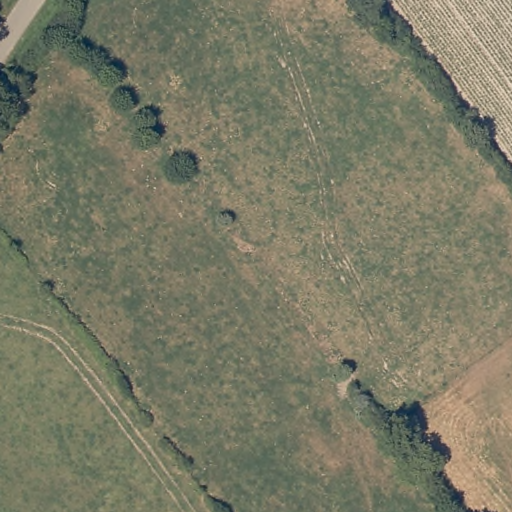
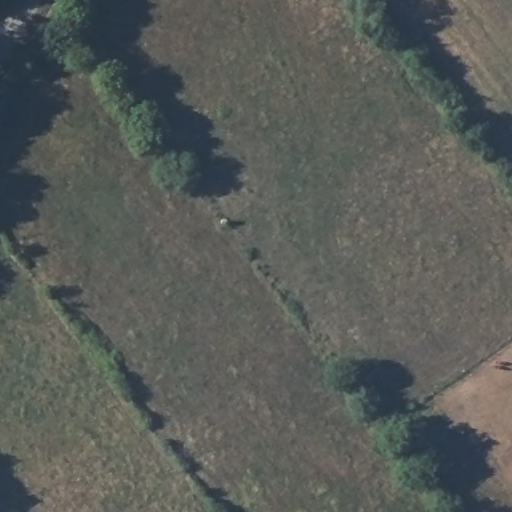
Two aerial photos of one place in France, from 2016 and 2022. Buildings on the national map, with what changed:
[]

